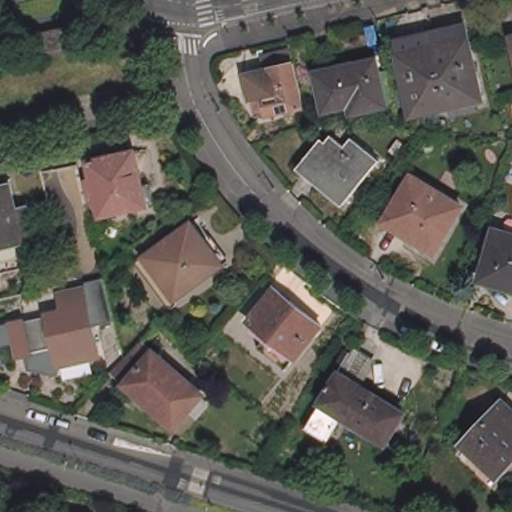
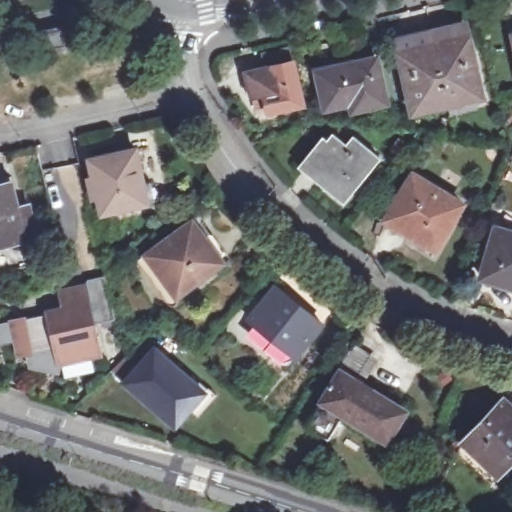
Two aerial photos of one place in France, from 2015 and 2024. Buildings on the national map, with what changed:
unchanged [(451,26),(452,30),(466,26),(483,96),(448,104),(445,91),(436,48),(435,46),(432,31),(451,26)]
unchanged [(66,30),(70,46),(50,50),(46,35),(66,30)]
unchanged [(436,48),(445,91),(448,104),(415,111),(401,54),(399,46),(414,42),(412,35),(432,31),(435,46),(436,48)]
unchanged [(256,97),(252,98),(247,73),(267,68),(265,54),(289,49),(292,63),(295,63),(304,106),(270,115),(268,108),(259,111),(256,97)]
unchanged [(346,66),(347,71),(378,65),(387,105),(353,112),(351,105),(327,110),(319,72),(346,66)]
unchanged [(321,137),(323,139),(330,131),(343,143),(350,135),(375,156),(343,193),(326,180),(330,176),(305,157),(321,137)]
unchanged [(142,149),(155,205),(106,215),(93,160),(142,149)]
unchanged [(465,203),(438,251),(421,242),(424,237),(388,216),(413,172),(465,203)]
unchanged [(11,189),(24,245),(0,250),(0,191),(11,189)]
unchanged [(193,219),(226,262),(171,305),(138,262),(193,219)]
unchanged [(512,280),(503,277),(501,283),(483,277),(497,227),(512,231),(512,280)]
unchanged [(112,324),(95,329),(103,355),(56,367),(50,346),(14,355),(11,344),(0,346),(0,319),(58,305),(57,289),(103,279),(112,324)]
unchanged [(285,293),(283,295),(291,301),(292,299),(322,324),(297,357),(251,320),(277,287),(285,293)]
unchanged [(123,360),(145,339),(206,393),(177,428),(112,371),(123,360)]
unchanged [(383,361),(368,384),(412,411),(391,447),(345,419),(333,438),(313,426),(327,404),(322,400),(352,354),(356,358),(362,348),(383,361)]
unchanged [(512,457),(495,474),(463,442),(500,404),(512,415),(512,457)]

